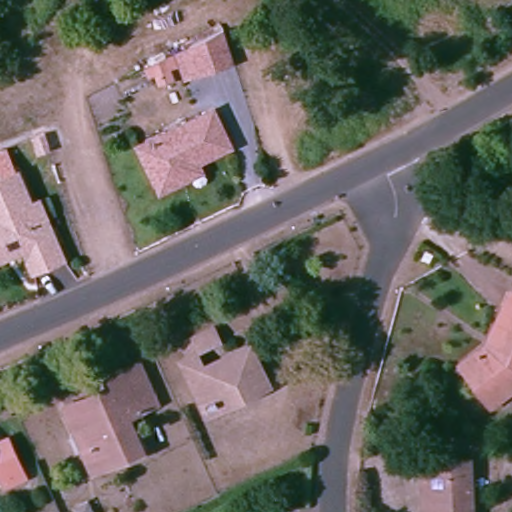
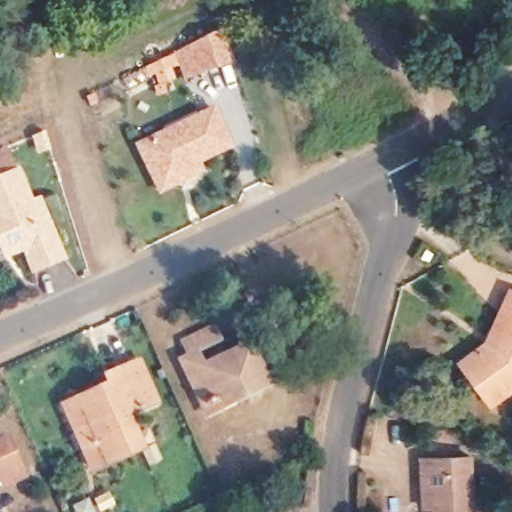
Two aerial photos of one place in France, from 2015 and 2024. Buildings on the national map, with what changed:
unchanged [(171,56),(185,50),(218,34),(226,60),(192,71),(178,76),(171,56)]
unchanged [(172,182),(152,191),(131,144),(204,109),(220,142),(187,159),(193,171),(172,182)]
unchanged [(47,147),(36,150),(31,136),(43,132),(47,147)]
unchanged [(10,248),(0,252),(0,173),(2,172),(4,177),(9,175),(21,209),(30,205),(35,217),(54,263),(22,276),(10,248)]
unchanged [(425,268),(417,265),(421,257),(428,260),(425,268)]
unchanged [(486,409),(455,368),(473,355),(485,346),(499,313),(505,298),(512,301),(512,391),(486,409)]
unchanged [(195,407),(175,365),(185,358),(178,344),(207,328),(215,343),(191,355),(199,370),(245,348),(263,389),(230,406),(200,420),(195,407)]
unchanged [(68,440),(76,435),(68,418),(64,410),(111,386),(109,380),(135,366),(154,405),(125,420),(140,450),(95,471),(86,455),(77,459),(68,440)]
unchanged [(0,495),(0,461),(14,488),(0,495)]
unchanged [(414,511),(412,478),(411,464),(460,461),(464,512),(425,512),(425,511),(414,511)]

